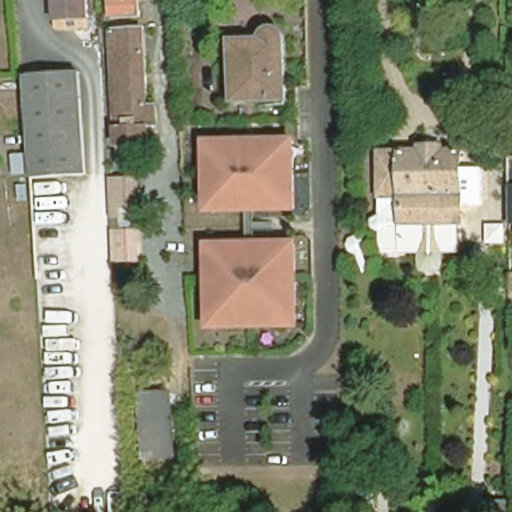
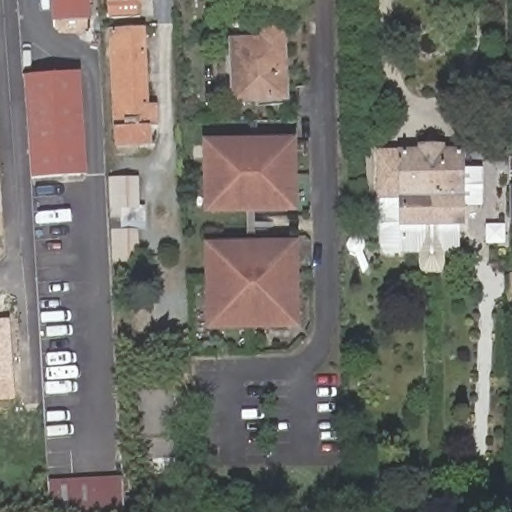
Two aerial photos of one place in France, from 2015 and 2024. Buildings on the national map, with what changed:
unchanged [(85,25),(61,26),(60,15),(50,15),(49,0),(84,0),(84,3),(85,25)]
unchanged [(107,13),(106,0),(134,0),(135,12),(107,13)]
unchanged [(229,37),(260,35),(262,30),(262,29),(263,28),(263,27),(264,27),(265,27),(265,26),(266,25),(267,25),(268,24),(269,24),(270,24),(271,24),(272,24),(273,24),(274,24),(275,24),(275,25),(276,25),(277,25),(277,26),(278,26),(278,27),(279,27),(280,27),(280,28),(280,29),(281,29),(281,30),(282,35),(282,37),(284,97),(231,98),(229,37)]
unchanged [(152,121),(142,122),(142,141),(115,142),(109,27),(137,26),(141,102),(151,101),(152,121)]
unchanged [(30,177),(29,161),(23,75),(77,70),(84,172),(30,177)]
unchanged [(509,127),(509,144),(494,144),(493,128),(509,127)]
unchanged [(295,140),(297,217),(202,217),(202,143),(295,140)]
unchanged [(460,146),(460,152),(465,152),(466,164),(460,165),(461,218),(459,218),(402,220),(402,210),(396,212),(395,200),(402,199),(401,181),(401,179),(396,179),(395,164),(401,162),(401,149),(460,146)]
unchanged [(378,210),(378,194),(376,194),(376,150),(401,149),(401,162),(395,164),(396,179),(401,179),(401,181),(402,199),(395,200),(396,212),(402,210),(402,220),(459,218),(459,249),(443,249),(443,261),(442,265),(440,267),(433,268),(422,267),(420,265),(418,260),(418,249),(385,249),(381,246),(378,242),(378,226),(370,224),(370,215),(378,210)]
unchanged [(510,162),(512,162),(512,227),(510,227),(510,173),(510,162)]
unchanged [(120,218),(113,218),(111,182),(135,182),(136,205),(137,217),(120,218)]
unchanged [(483,245),(485,223),(505,223),(505,244),(483,245)]
unchanged [(296,245),(298,332),(205,335),(209,247),(296,245)]
new [(16,399),(0,400),(0,319),(9,318),(16,399)]
unchanged [(171,455),(141,457),(140,457),(137,394),(142,393),(168,392),(171,455)]
new [(120,477),(122,512),(52,512),(50,481),(120,477)]
new [(357,478),(380,478),(380,506),(357,506),(357,478)]
new [(266,506),(290,507),(290,512),(266,512),(266,506)]

